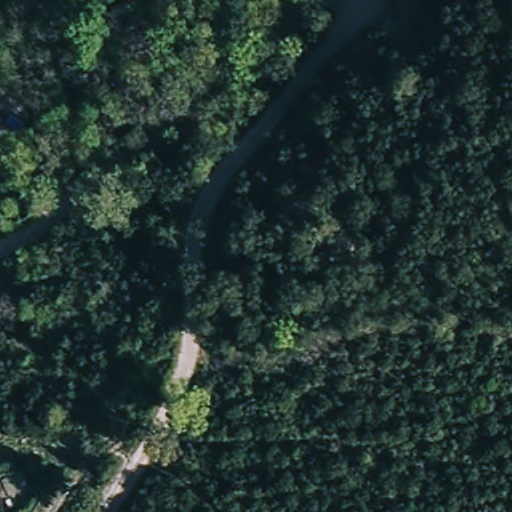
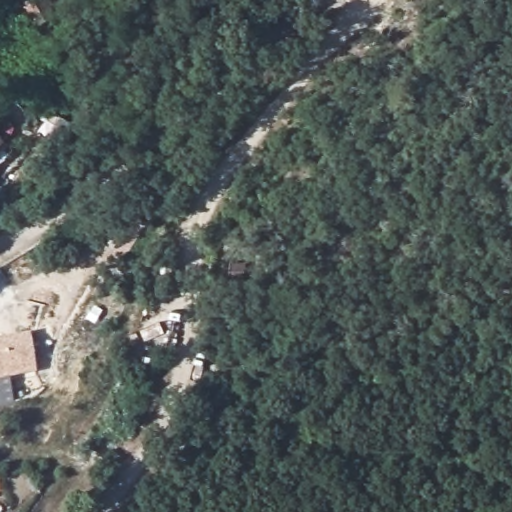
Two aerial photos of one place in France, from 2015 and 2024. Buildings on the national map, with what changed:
unchanged [(21,45),(0,25),(0,0),(8,0),(25,17),(37,28),(21,45)]
new [(30,329),(36,369),(0,376),(0,335),(30,329)]

